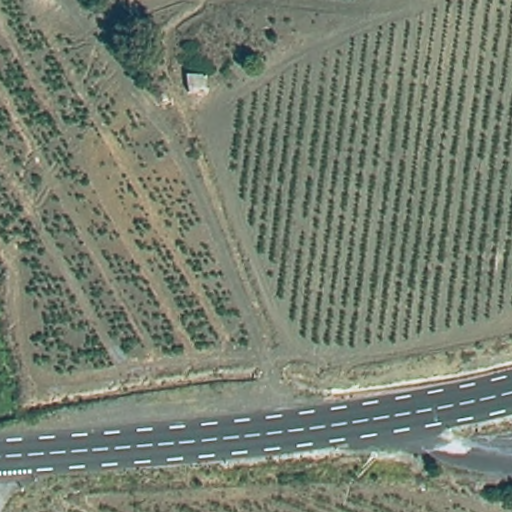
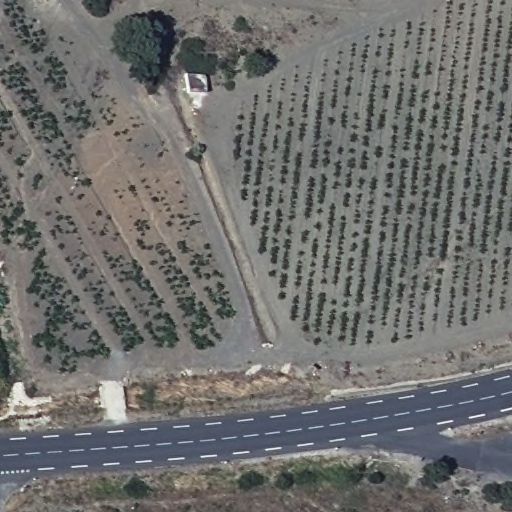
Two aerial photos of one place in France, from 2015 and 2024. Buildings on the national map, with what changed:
unchanged [(208,68),(211,87),(185,90),(186,70),(208,68)]

